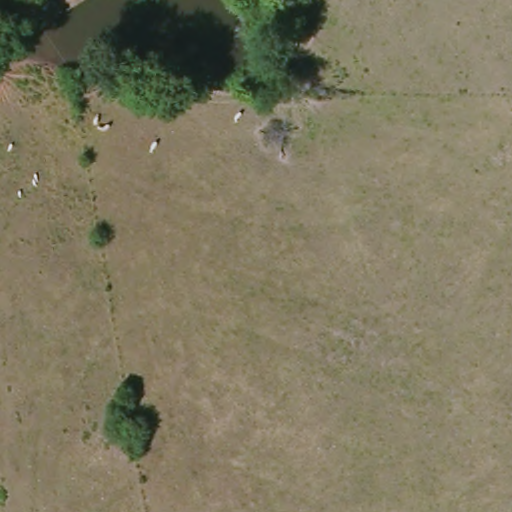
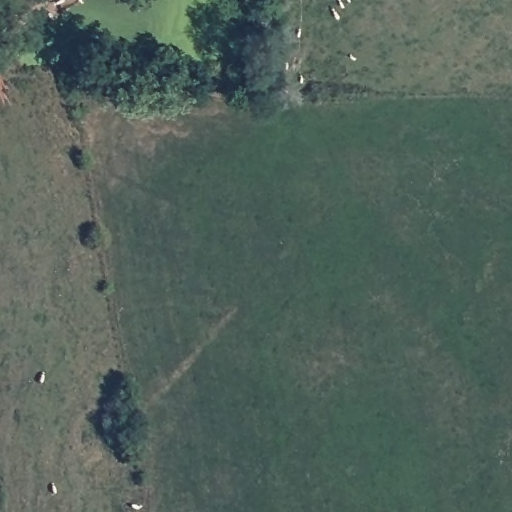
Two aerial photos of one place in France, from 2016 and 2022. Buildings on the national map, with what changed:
[]

